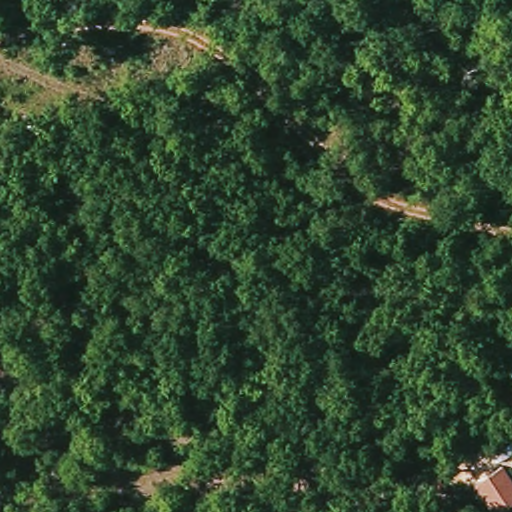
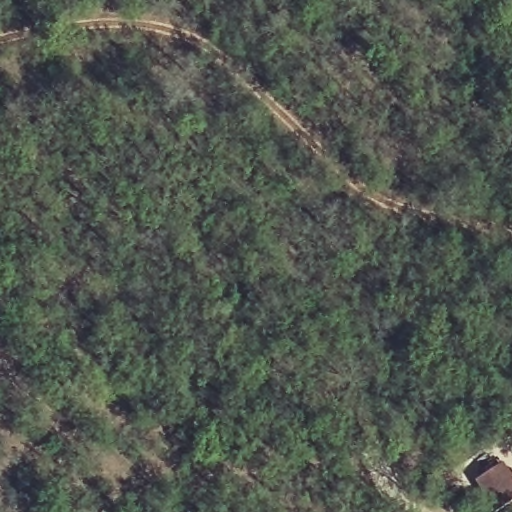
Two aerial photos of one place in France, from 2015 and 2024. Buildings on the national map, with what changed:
unchanged [(512,476),(512,500),(494,511),(476,481),(503,462),(512,476)]

